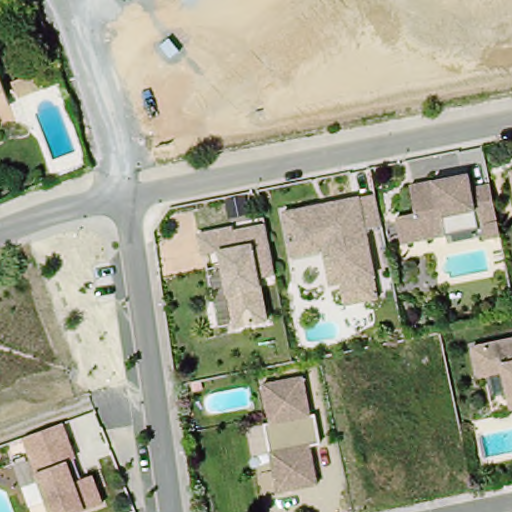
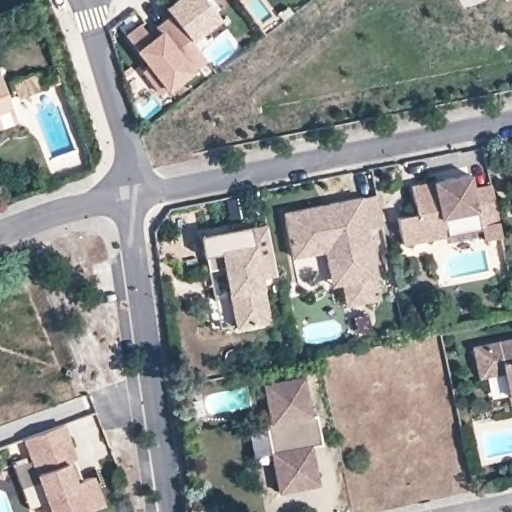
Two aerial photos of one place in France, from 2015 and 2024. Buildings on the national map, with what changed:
new [(191,40),(206,60),(192,70),(167,89),(159,94),(141,70),(148,66),(135,50),(138,48),(125,34),(140,23),(153,35),(157,31),(151,27),(169,12),(165,5),(172,0),(205,0),(219,19),(191,40)]
unchanged [(43,85),(36,76),(47,69),(53,78),(43,85)]
unchanged [(0,116),(0,85),(10,112),(0,116)]
unchanged [(0,132),(1,134),(0,134),(0,132)]
unchanged [(478,239),(475,225),(471,225),(467,210),(435,217),(440,236),(396,245),(390,219),(409,215),(403,186),(425,181),(435,179),(460,173),(464,187),(483,182),(494,235),(478,239)]
unchanged [(333,270),(329,250),(297,258),(295,246),(289,214),(381,194),(387,226),(372,230),(381,276),(344,283),(336,285),(333,270)]
unchanged [(249,273),(258,316),(228,323),(213,262),(210,248),(192,252),(186,233),(220,225),(222,228),(254,220),(265,270),(249,273)]
unchanged [(512,395),(506,370),(482,376),(475,346),(512,338),(512,397),(512,395)]
unchanged [(283,471),(278,451),(273,422),(278,420),(272,395),(269,382),(279,380),(309,373),(318,411),(323,411),(327,431),(329,439),(319,440),(328,481),(301,487),(287,490),(283,471)]
unchanged [(73,463),(65,466),(73,487),(90,480),(101,508),(91,512),(48,512),(22,442),(60,428),(73,463)]

